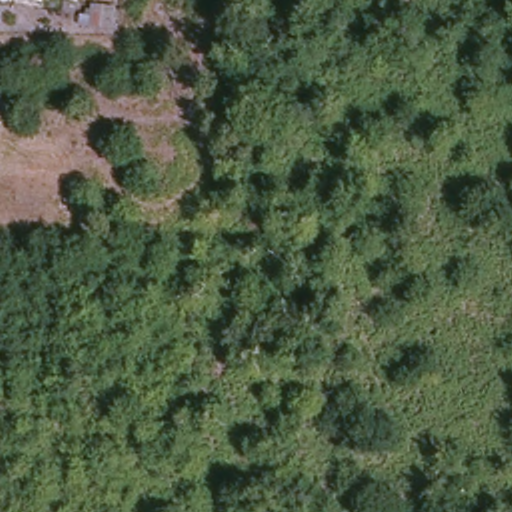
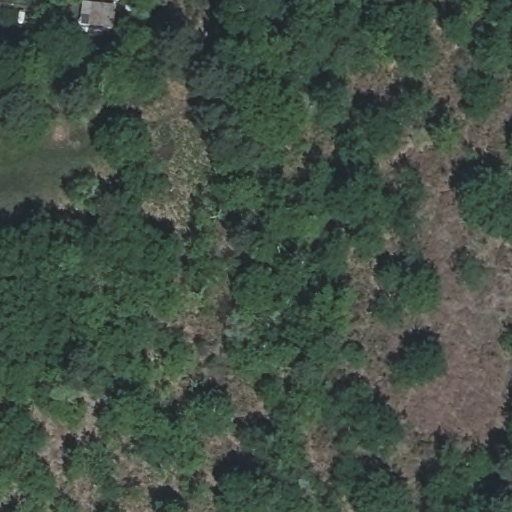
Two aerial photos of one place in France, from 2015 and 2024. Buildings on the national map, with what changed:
unchanged [(91,4),(116,7),(114,30),(89,27),(91,4)]

